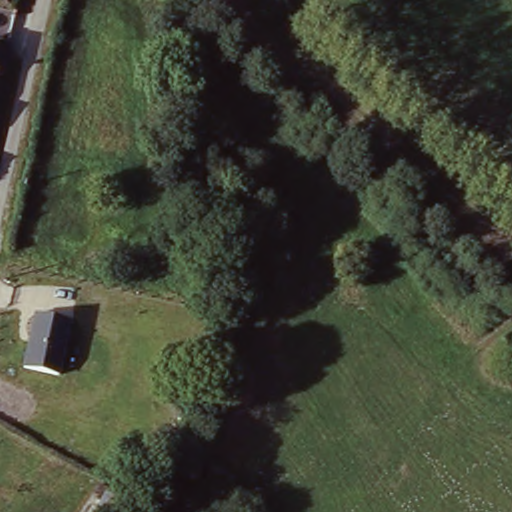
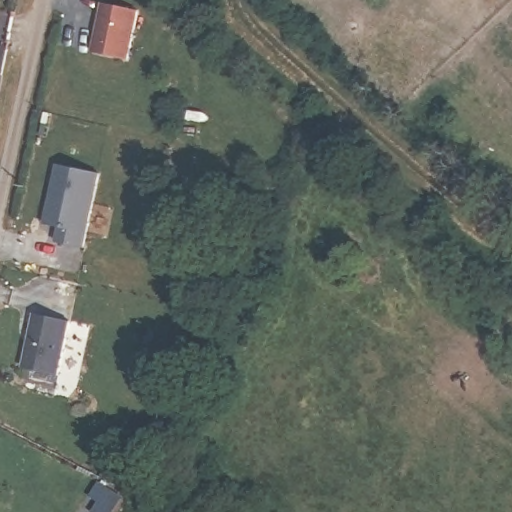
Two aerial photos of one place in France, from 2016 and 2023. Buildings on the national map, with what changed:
new [(94,57),(105,6),(139,13),(128,63),(94,57)]
unchanged [(4,44),(0,59),(0,43),(4,44)]
new [(60,166),(102,177),(83,246),(58,241),(61,227),(47,224),(60,166)]
unchanged [(36,316),(72,324),(61,379),(24,371),(36,316)]
new [(118,512),(97,512),(102,505),(94,500),(102,482),(127,496),(118,512)]

